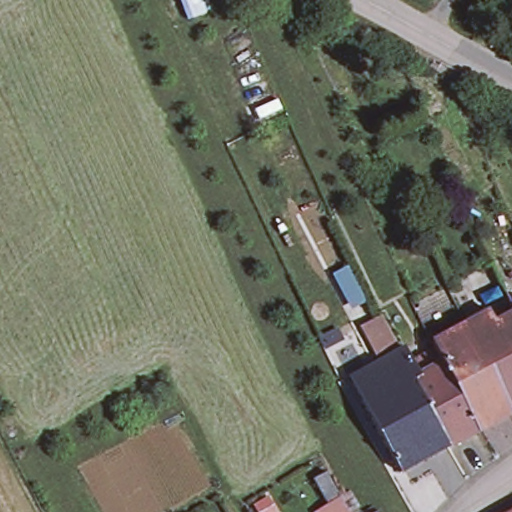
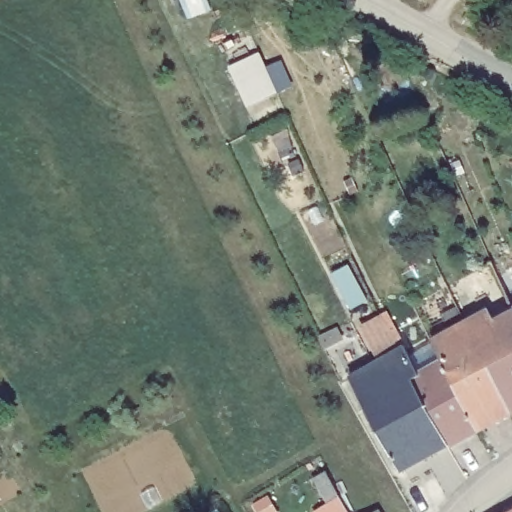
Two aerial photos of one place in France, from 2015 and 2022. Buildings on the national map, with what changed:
new [(259,52),(277,92),(246,105),(228,66),(259,52)]
unchanged [(509,300),(512,305),(512,412),(511,413),(467,323),(509,300)]
unchanged [(425,459),(402,472),(365,406),(350,378),(374,365),(381,361),(364,332),(384,321),(399,351),(404,348),(419,375),(411,379),(449,447),(425,459)]
unchanged [(433,341),(467,323),(511,413),(479,430),(443,362),(433,341)]
unchanged [(419,375),(443,362),(479,430),(449,447),(411,379),(419,375)]
unchanged [(326,468),(351,512),(336,512),(314,474),(326,468)]
unchanged [(499,512),(512,505),(512,512),(499,512)]
unchanged [(383,512),(369,512),(379,506),(383,512)]

